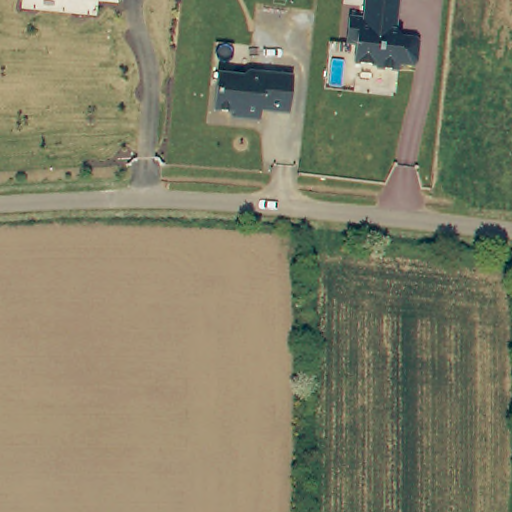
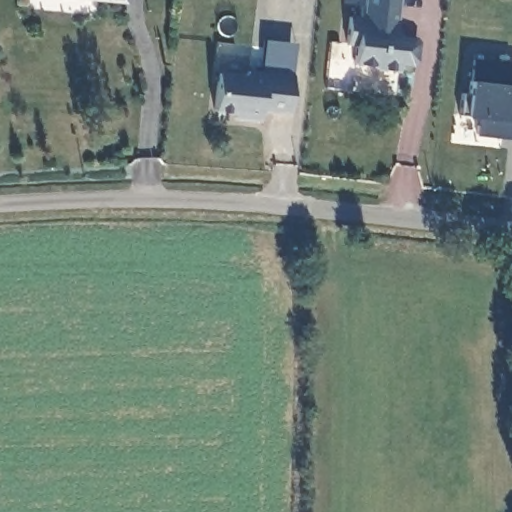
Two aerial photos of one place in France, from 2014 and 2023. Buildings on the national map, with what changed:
unchanged [(102,0),(121,0),(120,2),(102,0)]
unchanged [(354,15),(357,0),(389,0),(386,27),(392,35),(404,37),(408,41),(406,58),(401,61),(389,59),(388,68),(364,64),(365,59),(342,56),(345,38),(337,37),(340,14),(354,15)]
new [(508,140),(474,136),(475,119),(466,118),(470,78),(473,58),(512,62),(512,123),(510,123),(508,140)]
unchanged [(258,109),(257,119),(239,118),(240,113),(213,109),(217,71),(242,74),(243,66),(287,72),(282,113),(258,109)]

